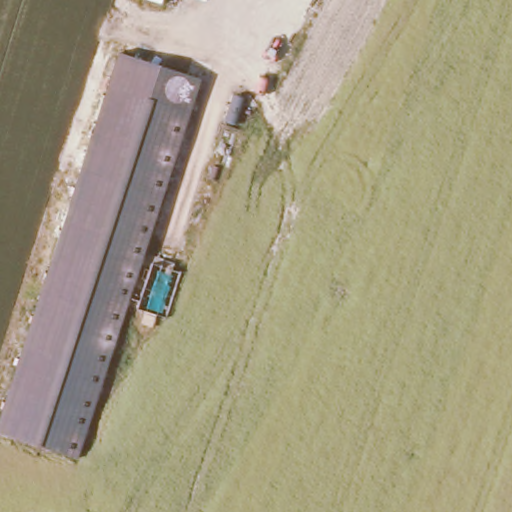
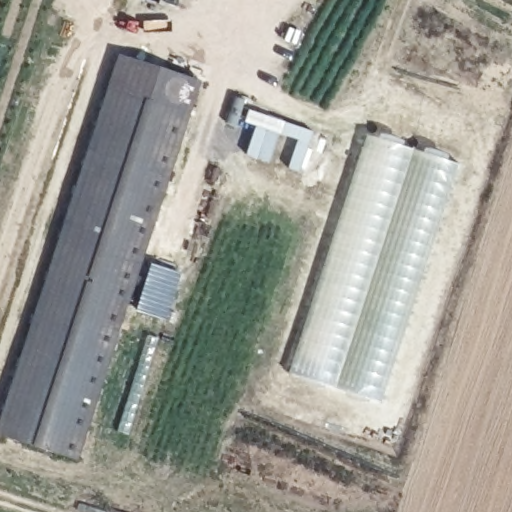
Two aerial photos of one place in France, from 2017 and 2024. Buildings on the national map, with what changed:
unchanged [(117,56),(199,83),(79,461),(0,436),(0,422),(117,56)]
new [(367,135),(448,161),(459,165),(382,402),(290,374),(367,135)]
unchanged [(170,319),(139,313),(150,266),(184,276),(170,319)]

